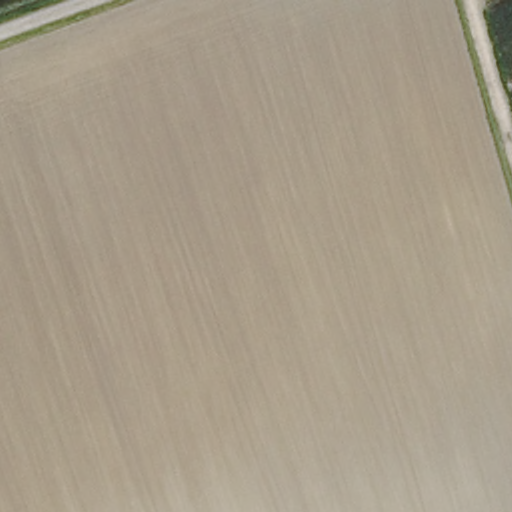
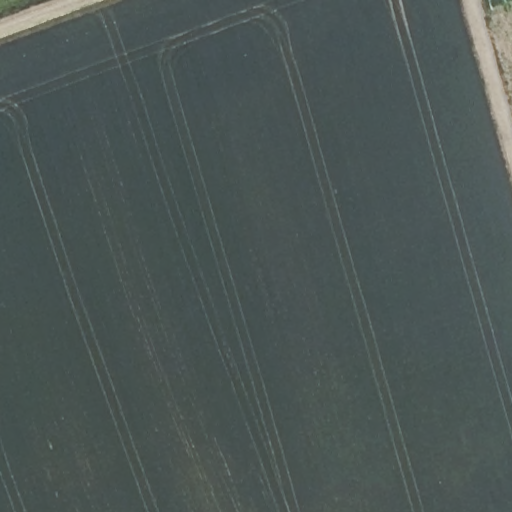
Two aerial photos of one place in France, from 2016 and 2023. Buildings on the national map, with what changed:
[]

